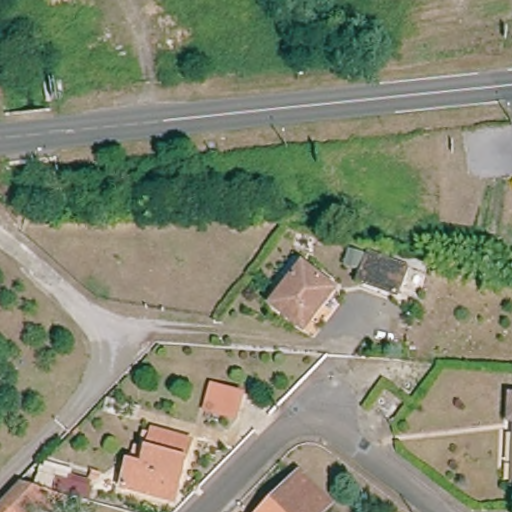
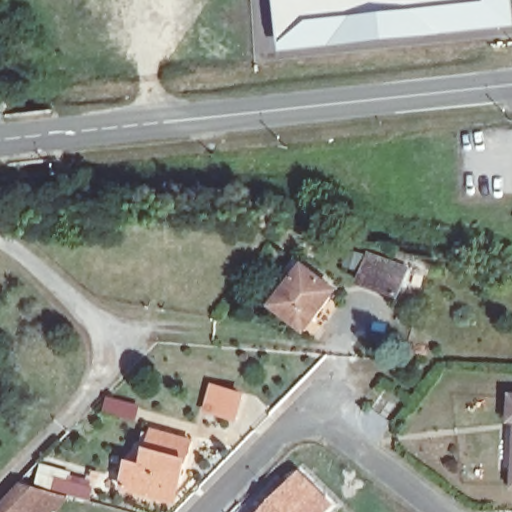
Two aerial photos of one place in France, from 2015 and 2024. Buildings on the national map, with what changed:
new [(512,26),(281,54),(276,0),(512,0),(512,26)]
unchanged [(367,256),(402,270),(392,298),(357,286),(367,256)]
unchanged [(300,268),(326,296),(293,331),(265,306),(300,268)]
unchanged [(238,392),(230,417),(202,408),(208,385),(238,392)]
unchanged [(511,420),(502,420),(504,394),(512,394),(512,484),(507,483),(511,420)]
unchanged [(139,460),(145,435),(183,445),(173,481),(169,480),(163,503),(115,491),(124,457),(139,460)]
unchanged [(78,482),(74,498),(34,487),(38,471),(78,482)]
unchanged [(268,501),(295,473),(327,503),(318,512),(265,512),(272,505),(268,501)]
unchanged [(64,497),(50,512),(0,512),(0,503),(18,485),(64,497)]

